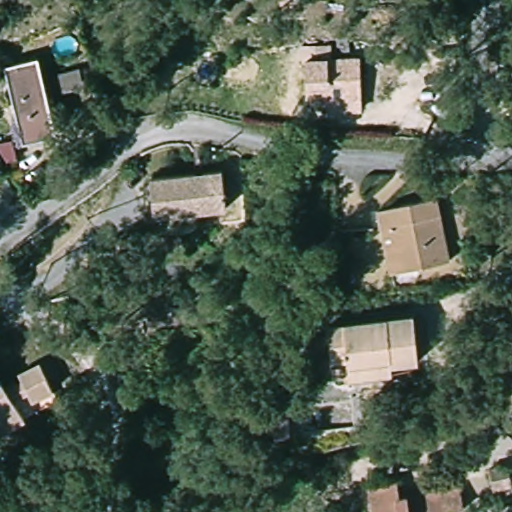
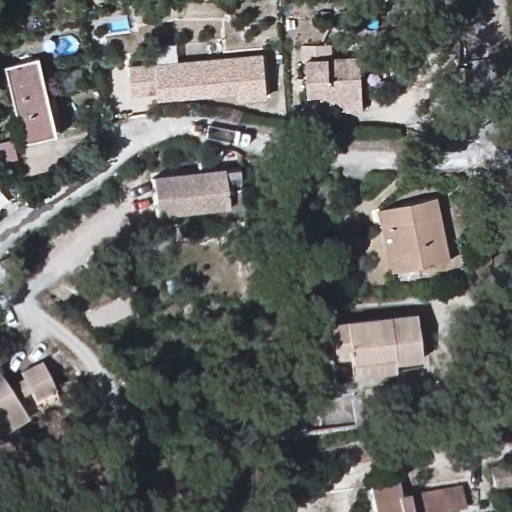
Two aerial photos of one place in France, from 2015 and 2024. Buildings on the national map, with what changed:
unchanged [(326,115),(325,103),(305,104),(303,70),(296,70),(296,53),(332,50),(332,65),(357,64),(359,101),(360,114),(326,115)]
new [(262,54),(266,94),(238,96),(237,88),(156,95),(155,90),(129,91),(127,65),(262,54)]
unchanged [(35,114),(13,116),(6,61),(44,57),(51,111),(35,114)]
unchanged [(55,139),(17,141),(13,116),(35,114),(51,111),(55,139)]
unchanged [(157,212),(155,177),(223,172),(224,205),(157,212)]
unchanged [(403,275),(387,215),(440,198),(458,258),(403,275)]
unchanged [(394,375),(351,377),(349,363),(333,363),(330,323),(414,315),(418,366),(394,367),(394,375)]
unchanged [(20,370),(39,362),(51,391),(30,398),(25,389),(12,397),(22,416),(0,427),(0,377),(6,387),(23,377),(20,370)]
unchanged [(267,394),(288,392),(295,436),(275,443),(267,394)]
unchanged [(478,466),(498,462),(502,461),(508,481),(482,487),(478,466)]
unchanged [(364,487),(391,482),(393,499),(436,493),(466,489),(467,507),(438,511),(421,512),(366,512),(364,487)]

